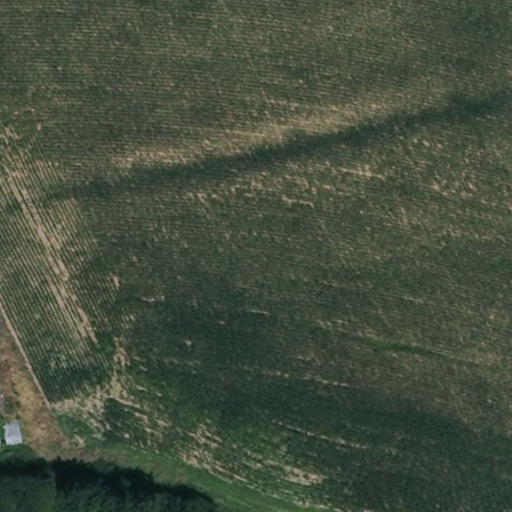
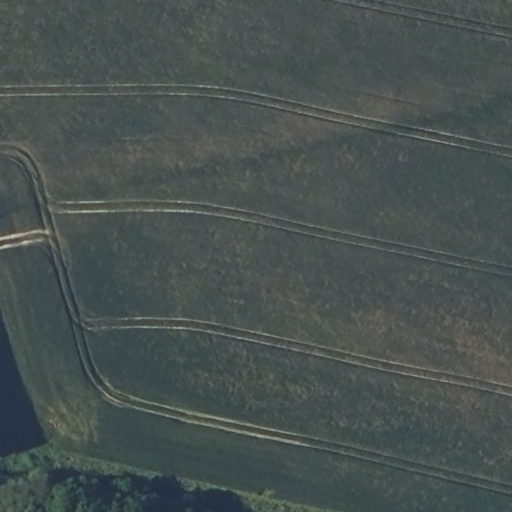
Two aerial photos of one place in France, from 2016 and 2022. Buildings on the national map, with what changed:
unchanged [(0,447),(0,436),(3,447),(0,447)]

